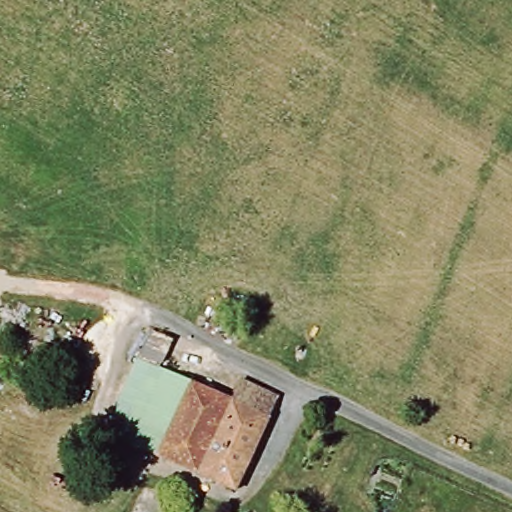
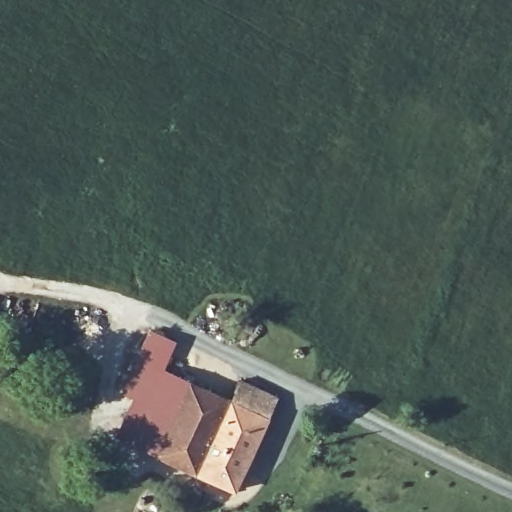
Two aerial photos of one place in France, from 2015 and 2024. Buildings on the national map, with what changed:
unchanged [(163,460),(186,403),(139,385),(149,365),(139,360),(151,328),(173,338),(161,371),(232,404),(242,383),(279,400),(241,491),(163,460)]
unchanged [(119,440),(139,385),(186,403),(163,460),(119,440)]

